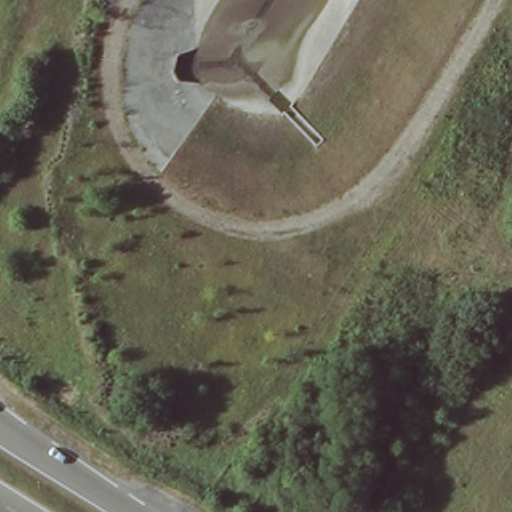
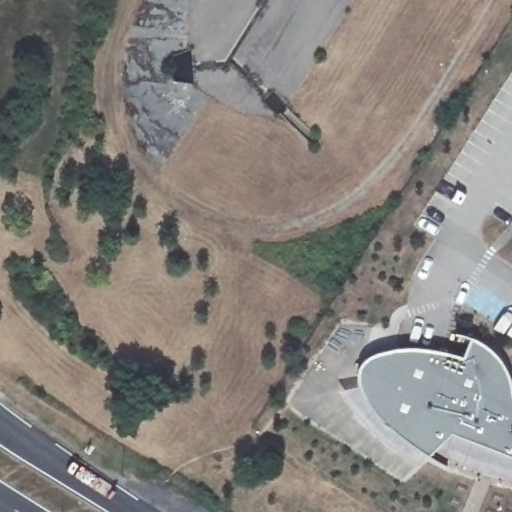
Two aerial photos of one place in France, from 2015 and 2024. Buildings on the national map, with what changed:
new [(360,380),(361,367),(370,357),(388,350),(410,348),(435,350),(467,358),(473,337),(484,341),(500,357),(511,378),(512,387),(512,480),(495,477),(467,469),(437,451),(431,455),(423,465),(402,452),(381,437),(362,420),(340,391),(361,385),(360,380)]

